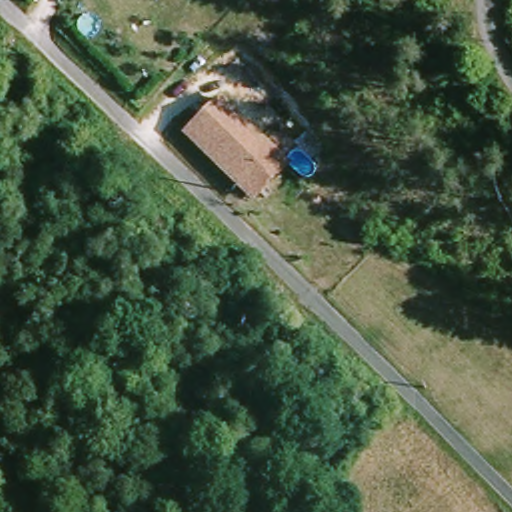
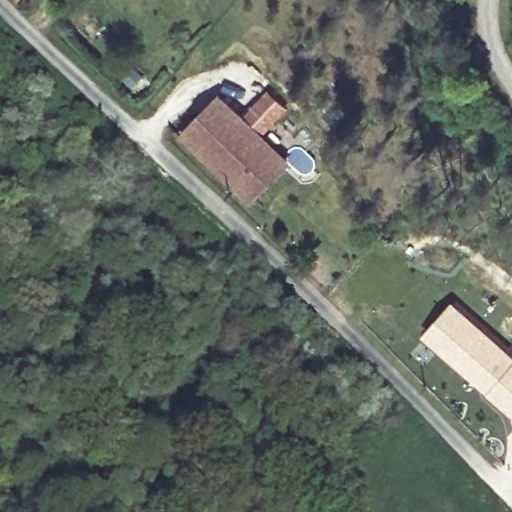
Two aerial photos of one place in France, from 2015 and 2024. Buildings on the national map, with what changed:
unchanged [(236,186),(182,130),(216,97),(283,167),(266,184),(249,200),(236,186)]
new [(452,362),(459,354),(453,348),(446,357),(424,338),(451,310),(509,362),(497,376),(503,382),(512,371),(512,415),(491,397),(468,376),(452,362)]

